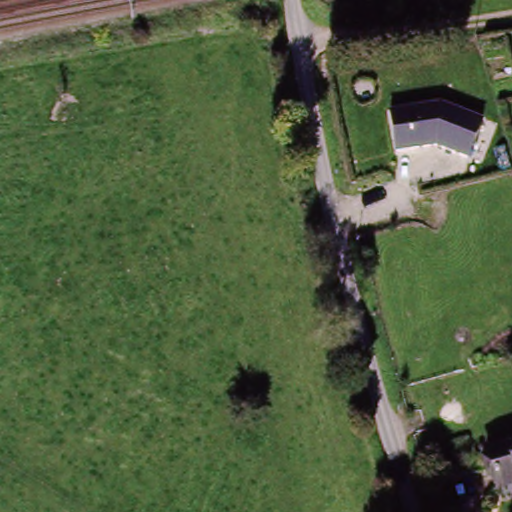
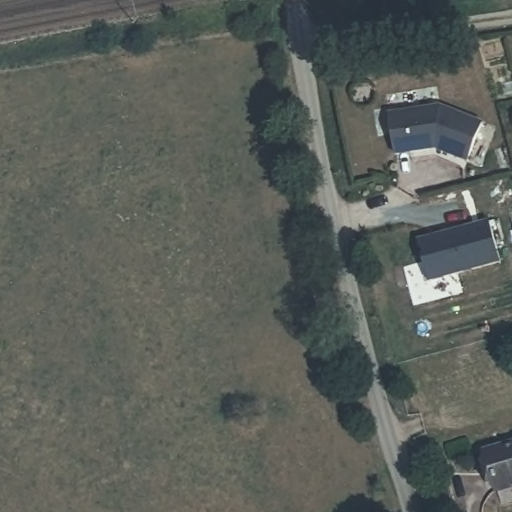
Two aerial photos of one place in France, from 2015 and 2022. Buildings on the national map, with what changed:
unchanged [(467,163),(434,151),(396,157),(390,114),(444,107),(484,125),(467,163)]
new [(443,235),(443,237),(455,235),(455,232),(488,223),(500,263),(427,282),(417,242),(443,235)]
unchanged [(512,442),(512,492),(501,495),(490,448),(512,442)]

